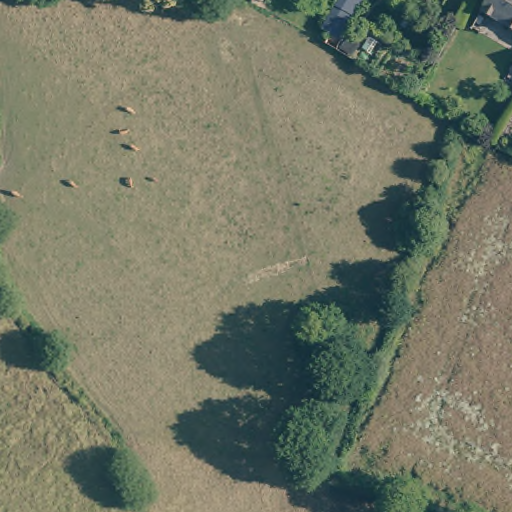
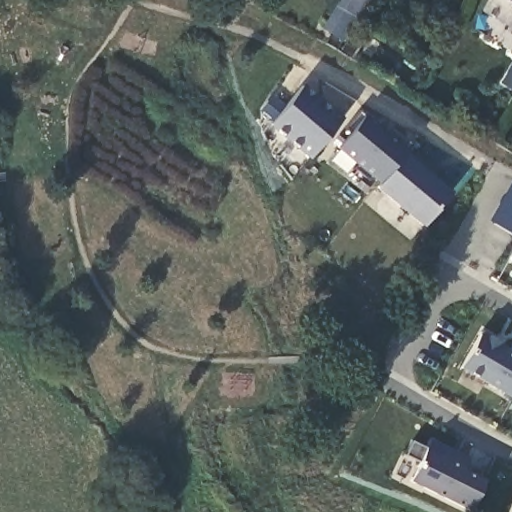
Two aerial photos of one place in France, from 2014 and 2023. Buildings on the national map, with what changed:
unchanged [(336,22),(348,0),(375,0),(356,34),(336,22)]
unchanged [(487,9),(491,0),(512,0),(512,22),(487,9)]
new [(303,85),(343,118),(308,159),(268,125),(303,85)]
new [(367,115),(410,150),(406,156),(379,184),(371,176),(368,180),(355,168),(356,164),(336,148),(351,132),(346,128),(360,112),(367,115)]
new [(379,184),(406,156),(451,193),(424,226),(377,187),(379,184)]
new [(489,220),(512,182),(512,234),(489,220)]
new [(512,252),(512,260),(509,258),(512,252)]
new [(480,331),(506,345),(504,348),(512,352),(512,397),(511,399),(459,368),(480,331)]
new [(470,511),(410,482),(426,450),(431,439),(469,458),(463,471),(485,480),(470,511)]
new [(512,504),(512,512),(509,512),(512,504)]

